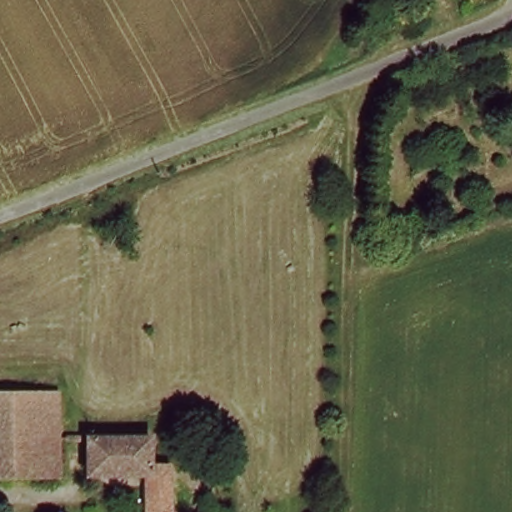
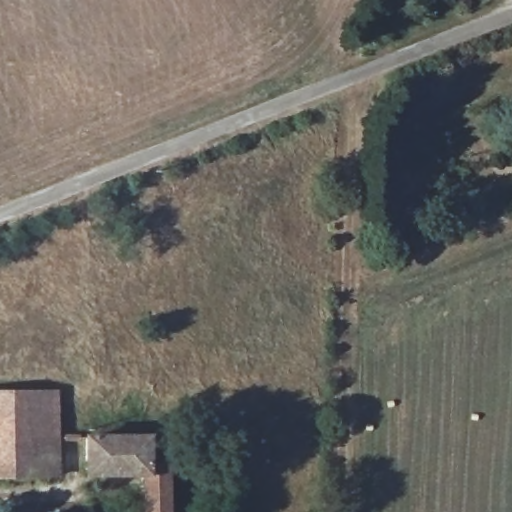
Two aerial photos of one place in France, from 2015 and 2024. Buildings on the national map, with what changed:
unchanged [(61,474),(0,476),(0,402),(65,403),(61,474)]
unchanged [(132,436),(133,474),(75,475),(73,438),(132,436)]
unchanged [(134,481),(157,481),(158,512),(133,512),(134,481)]

